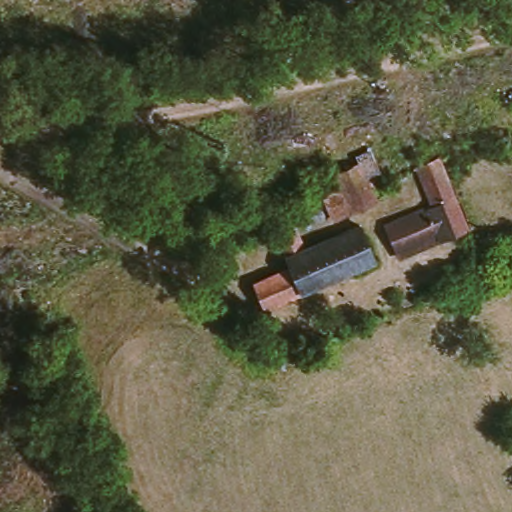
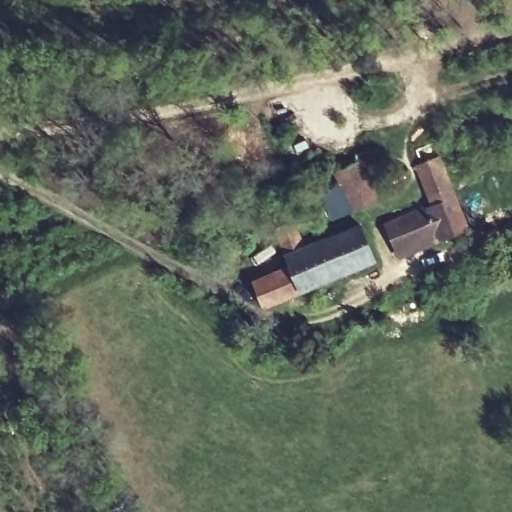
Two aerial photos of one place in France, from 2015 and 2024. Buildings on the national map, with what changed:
unchanged [(471,233),(441,244),(436,238),(401,249),(392,226),(438,207),(422,163),(441,155),(471,233)]
unchanged [(318,179),(366,159),(384,199),(336,217),(318,179)]
unchanged [(296,229),(301,245),(364,223),(376,259),(350,269),(267,303),(259,278),(279,270),(269,238),(296,229)]

